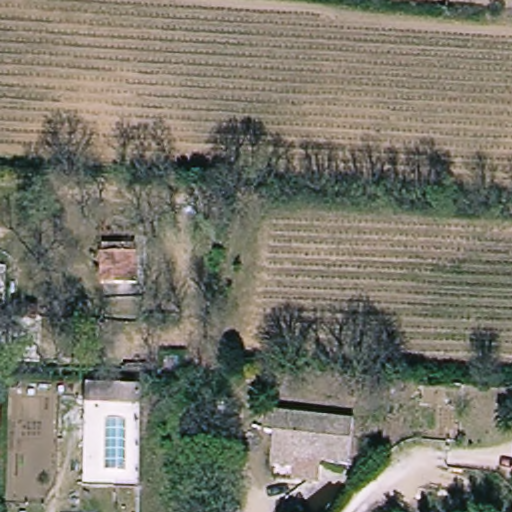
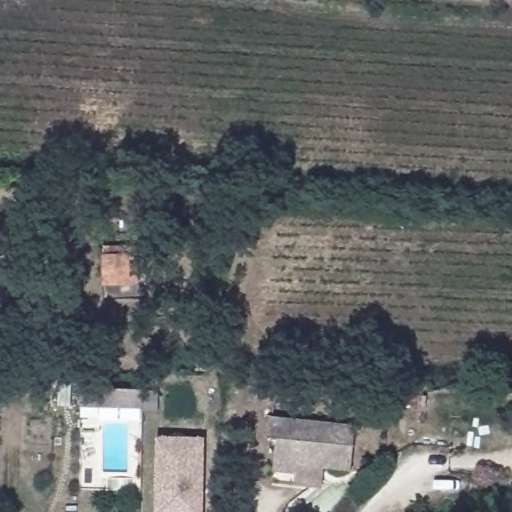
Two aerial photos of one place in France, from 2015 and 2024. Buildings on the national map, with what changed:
unchanged [(106,270),(105,253),(106,253),(106,246),(139,245),(140,254),(140,283),(120,283),(106,283),(106,270)]
unchanged [(29,306),(40,306),(39,316),(28,316),(29,306)]
new [(82,388),(144,390),(160,392),(158,413),(142,413),(141,410),(81,409),(82,388)]
unchanged [(303,485),(280,483),(283,441),(275,440),(276,421),(363,428),(359,471),(331,468),(330,477),(330,487),(303,485)]
new [(204,512),(154,512),(156,438),(205,438),(204,512)]

